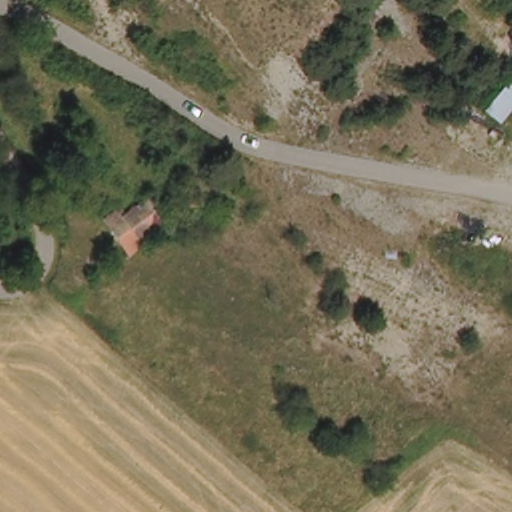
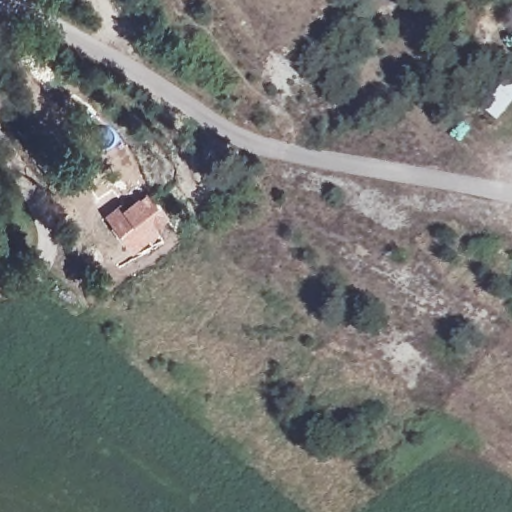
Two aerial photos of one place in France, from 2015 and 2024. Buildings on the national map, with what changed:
unchanged [(512,72),(512,109),(501,121),(483,106),(512,72)]
new [(116,206),(120,211),(147,193),(168,222),(156,230),(160,236),(131,256),(103,216),(116,206)]

